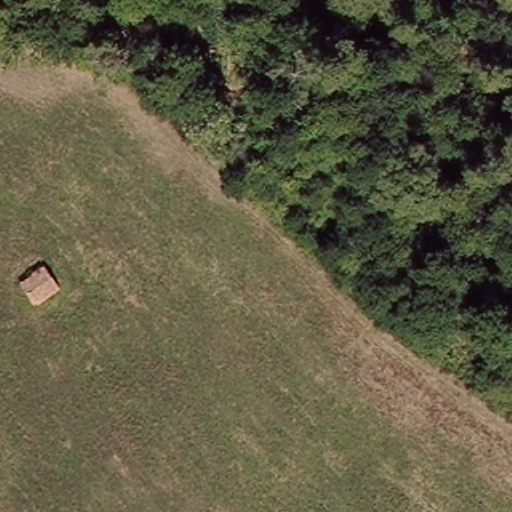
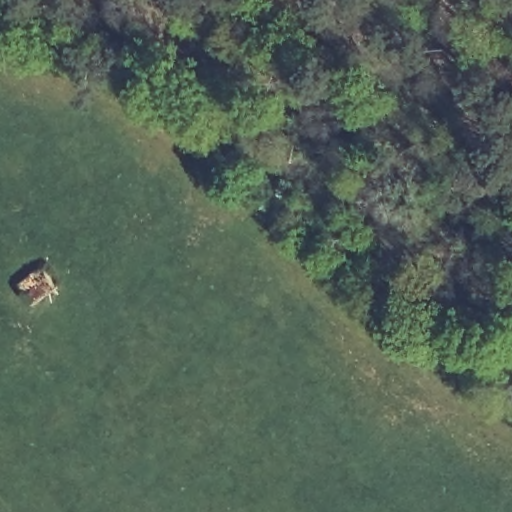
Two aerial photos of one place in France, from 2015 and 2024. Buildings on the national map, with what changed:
unchanged [(45,267),(59,287),(34,303),(22,284),(45,267)]

